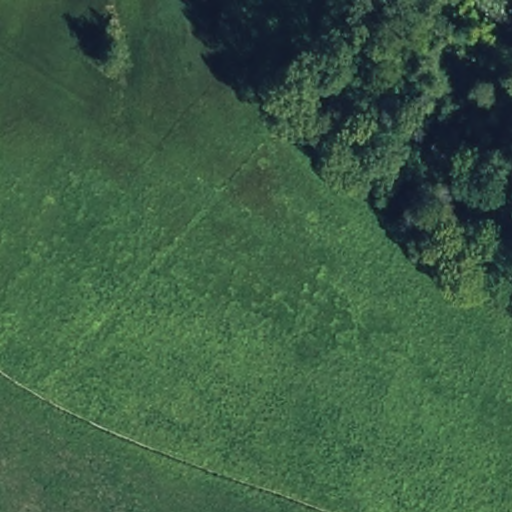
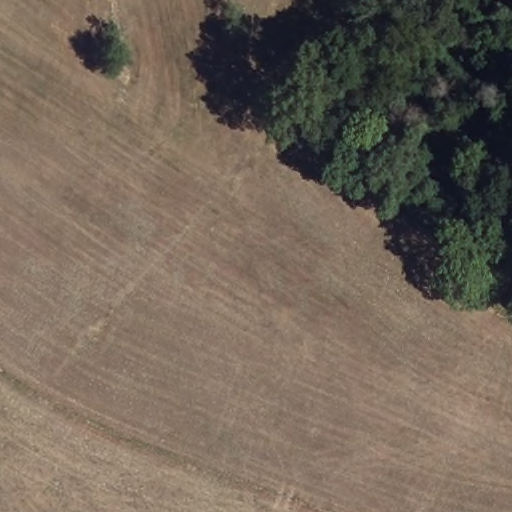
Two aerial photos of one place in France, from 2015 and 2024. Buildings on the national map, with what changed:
[]

